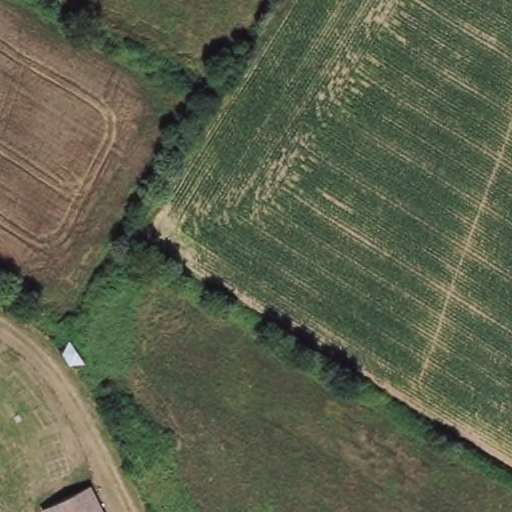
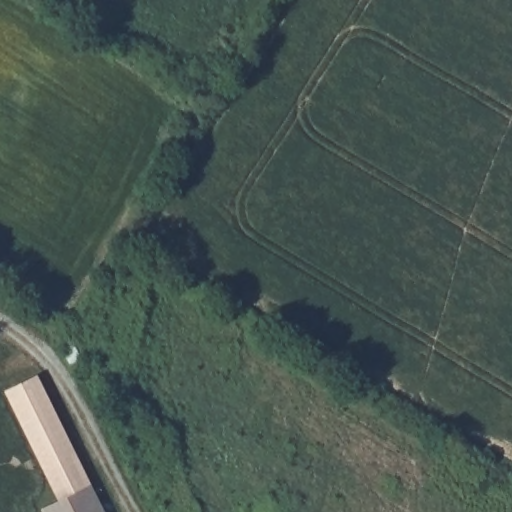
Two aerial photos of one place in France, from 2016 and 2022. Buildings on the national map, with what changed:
new [(59,501),(5,390),(37,372),(91,485),(59,501)]
unchanged [(103,512),(42,512),(41,510),(91,485),(103,512)]

